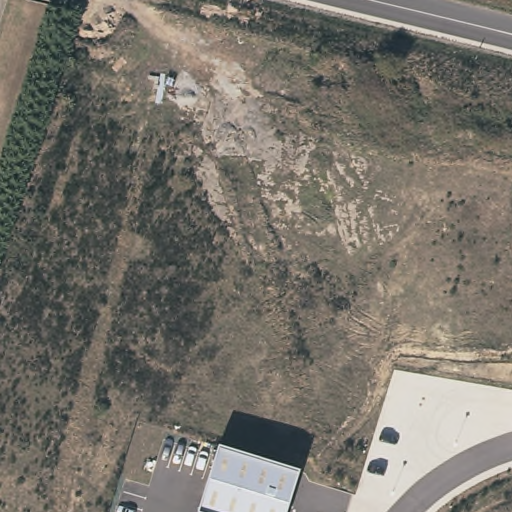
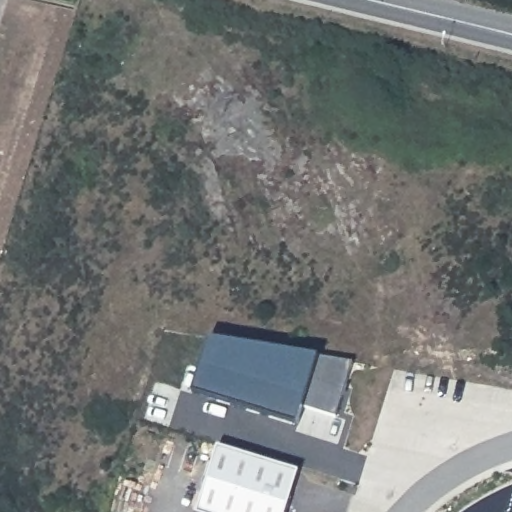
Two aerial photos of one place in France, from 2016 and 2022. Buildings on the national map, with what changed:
new [(192,392),(209,339),(318,356),(351,362),(335,415),(303,406),(296,424),(192,392)]
unchanged [(299,471),(299,472),(287,512),(197,512),(218,446),(299,471)]

